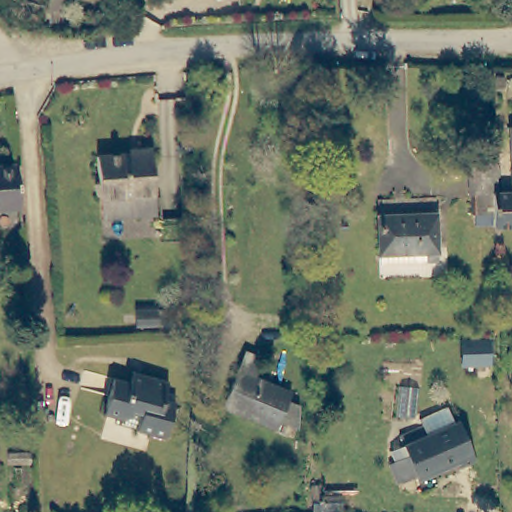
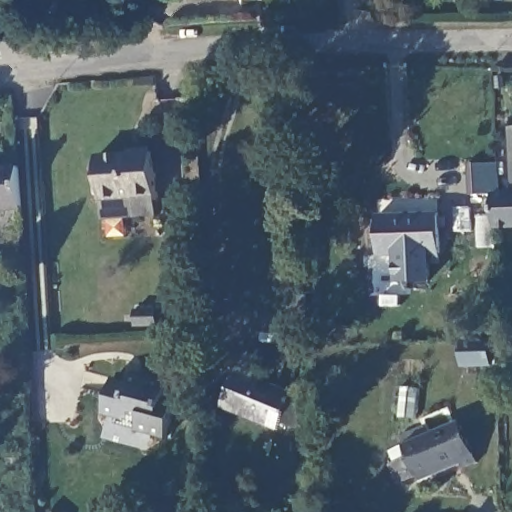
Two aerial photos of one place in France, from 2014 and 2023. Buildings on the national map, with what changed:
unchanged [(512,126),(512,179),(510,126),(512,126)]
unchanged [(156,148),(162,210),(108,215),(102,153),(156,148)]
unchanged [(482,214),(471,215),(471,194),(469,164),(487,163),(497,163),(499,193),(512,192),(512,224),(493,225),(493,219),(488,219),(483,220),(482,214)]
unchanged [(0,215),(0,171),(18,170),(21,213),(0,215)]
unchanged [(437,210),(439,256),(381,258),(378,212),(437,210)]
unchanged [(454,371),(451,348),(478,345),(481,368),(454,371)]
unchanged [(256,362),(250,380),(288,395),(286,401),(296,405),(295,428),(279,422),(275,431),(223,410),(241,356),(256,362)]
unchanged [(117,381),(134,385),(137,374),(170,383),(166,399),(182,403),(174,440),(147,434),(147,432),(124,426),(124,423),(108,419),(117,381)]
unchanged [(421,477),(400,486),(391,466),(397,463),(392,452),(404,446),(400,437),(423,426),(420,420),(448,407),(456,425),(460,422),(477,460),(478,462),(465,468),(463,464),(424,482),(421,477)]

